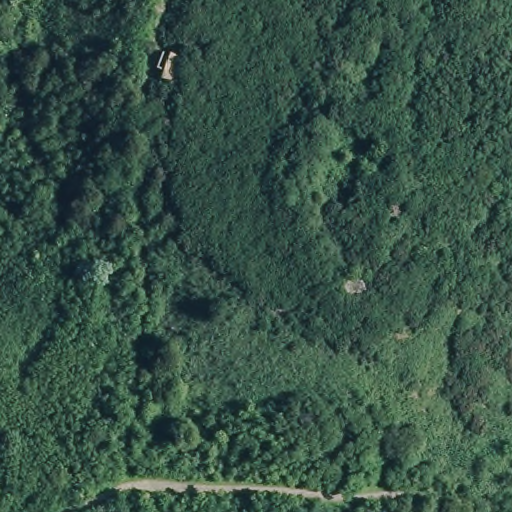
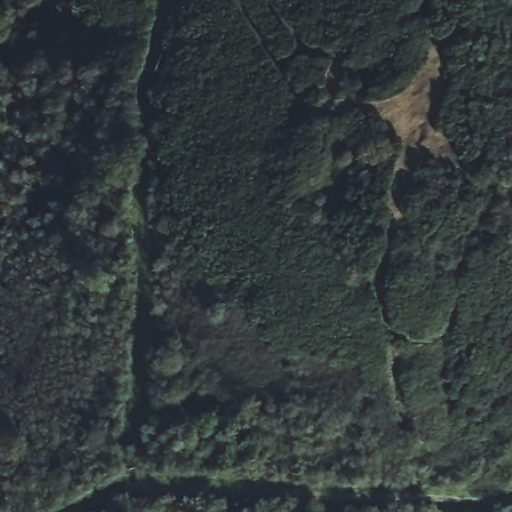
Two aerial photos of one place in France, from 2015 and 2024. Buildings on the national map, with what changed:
unchanged [(197,64),(189,89),(158,80),(167,54),(197,64)]

